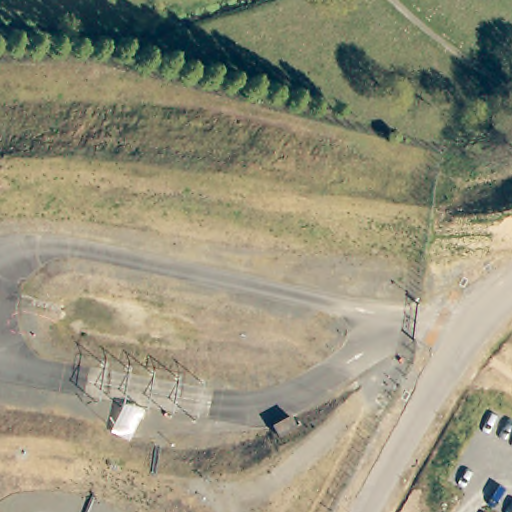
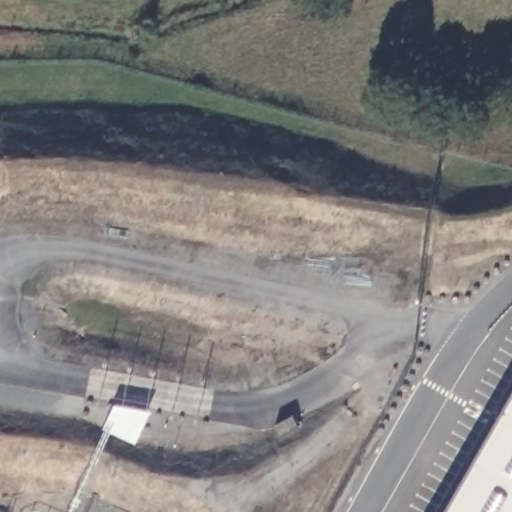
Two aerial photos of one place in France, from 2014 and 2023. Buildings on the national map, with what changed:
new [(444,512),(512,393),(512,512),(444,512)]

